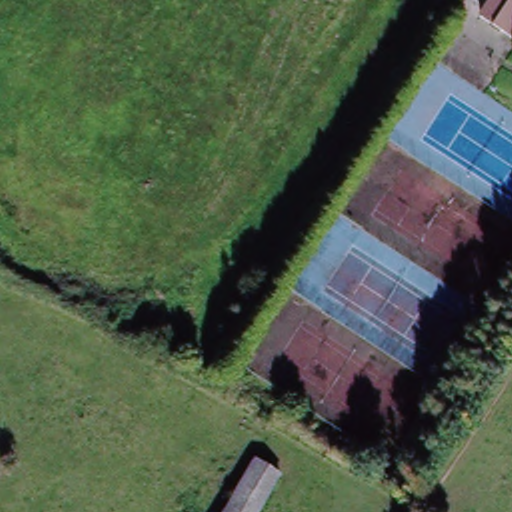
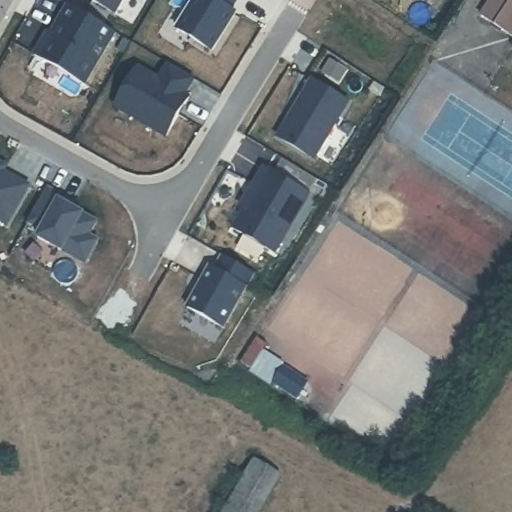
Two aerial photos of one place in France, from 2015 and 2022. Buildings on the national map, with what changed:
new [(95,0),(125,0),(118,13),(95,0)]
new [(179,32),(197,0),(239,0),(232,12),(236,15),(214,52),(179,32)]
unchanged [(489,0),(512,0),(512,32),(481,12),(489,0)]
new [(85,84),(38,56),(47,40),(49,41),(70,6),(116,32),(85,84)]
new [(49,41),(47,40),(51,32),(54,34),(49,41)]
new [(185,94),(190,97),(167,136),(116,106),(148,51),(194,77),(185,94)]
new [(315,157),(279,135),(312,78),(349,100),(315,157)]
new [(0,160),(7,164),(1,174),(4,170),(15,176),(29,184),(9,222),(0,218),(0,160)]
new [(275,252),(234,228),(258,186),(254,184),(264,166),(309,192),(275,252)]
new [(245,208),(242,206),(254,184),(258,186),(245,208)]
new [(84,264),(37,239),(42,232),(29,224),(48,190),(74,206),(72,210),(96,224),(88,236),(98,241),(84,264)]
new [(224,327),(188,307),(210,267),(215,269),(224,255),(254,272),(224,327)]
unchanged [(252,460),(278,477),(255,512),(219,512),(252,460)]

